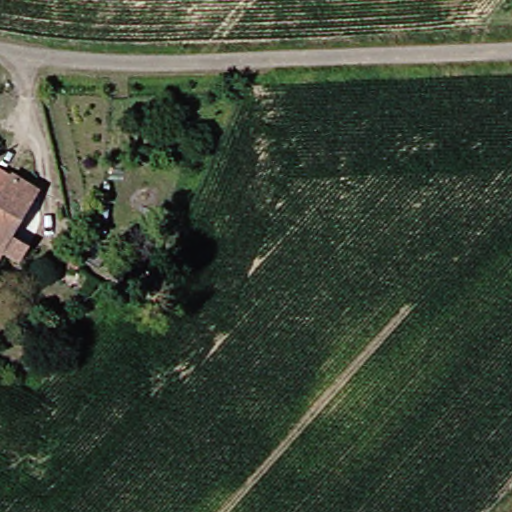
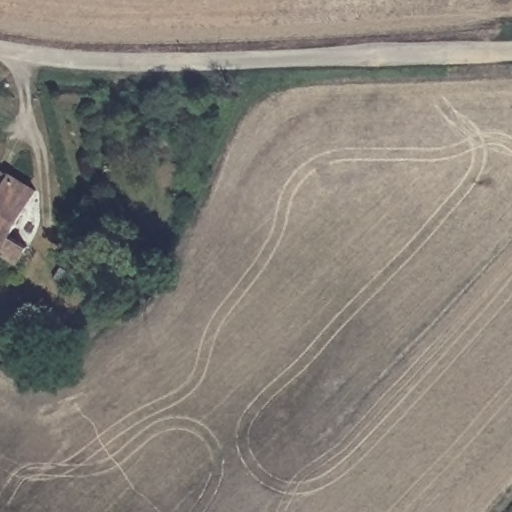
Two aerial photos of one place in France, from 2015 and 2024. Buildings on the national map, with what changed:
unchanged [(33,273),(0,252),(0,182),(5,174),(48,199),(22,241),(43,253),(33,273)]

